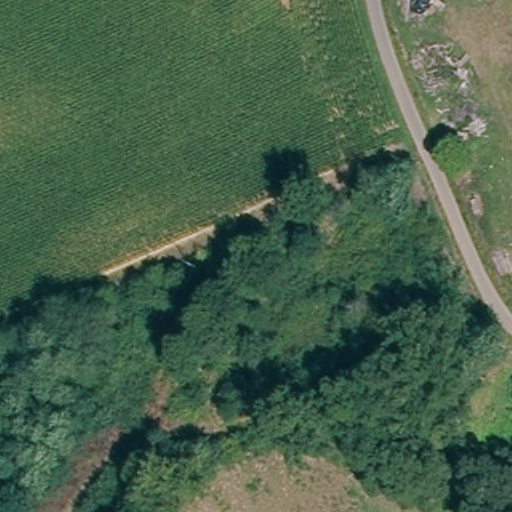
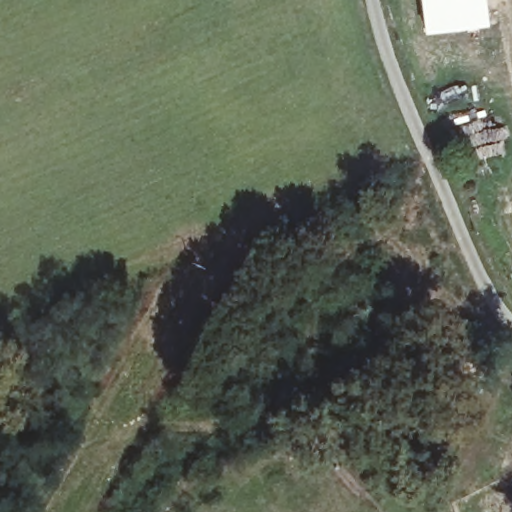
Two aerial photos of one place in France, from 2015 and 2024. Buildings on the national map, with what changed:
new [(487,25),(422,32),(418,0),(484,0),(487,25)]

